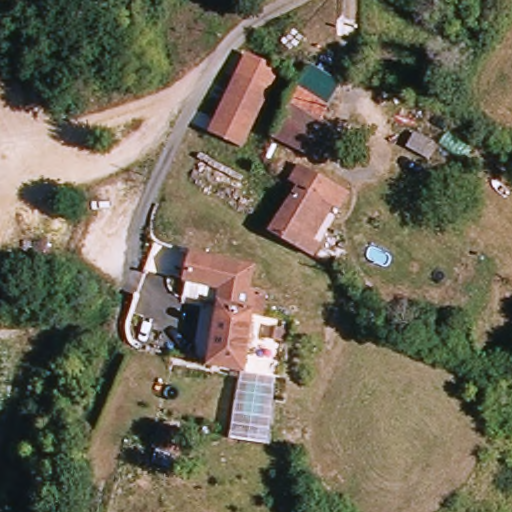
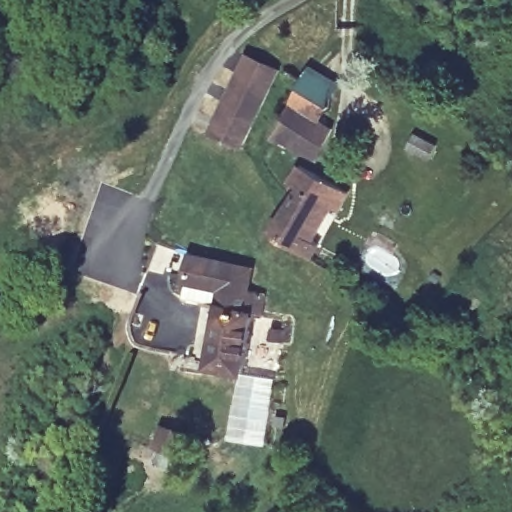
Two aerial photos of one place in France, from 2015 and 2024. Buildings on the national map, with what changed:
unchanged [(213,134),(220,121),(244,76),(274,94),(250,138),(244,151),(213,134)]
unchanged [(284,133),(289,113),(310,77),(344,95),(332,119),(340,124),(324,153),(284,133)]
unchanged [(434,161),(411,148),(421,133),(444,147),(434,161)]
unchanged [(334,236),(320,259),(305,250),(277,234),(294,205),(304,187),(298,184),(309,167),(356,197),(347,214),(340,211),(327,232),(334,236)]
unchanged [(196,277),(194,276),(199,251),(257,268),(254,287),(273,290),(269,312),(258,310),(249,367),(217,363),(227,303),(192,293),(196,277)]

